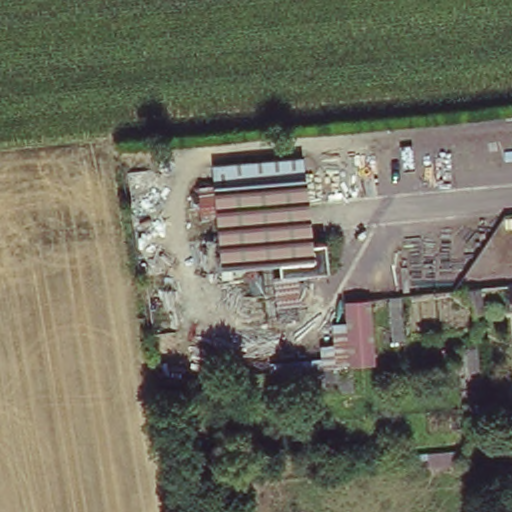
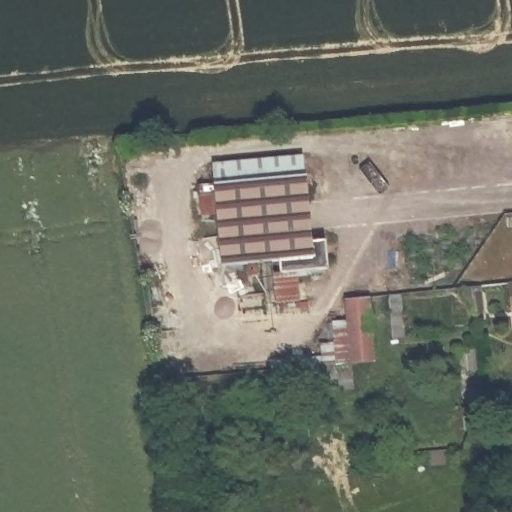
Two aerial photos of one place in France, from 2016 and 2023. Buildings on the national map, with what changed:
unchanged [(212,181),(210,163),(306,154),(313,237),(327,236),(330,266),(297,269),(301,302),(276,304),(272,258),(224,263),(219,211),(201,213),(197,183),(212,181)]
unchanged [(509,298),(507,279),(512,278),(512,297),(509,298)]
unchanged [(272,372),(269,360),(319,354),(319,346),(335,344),(335,322),(345,321),(347,300),(373,300),(377,366),(272,372)]

